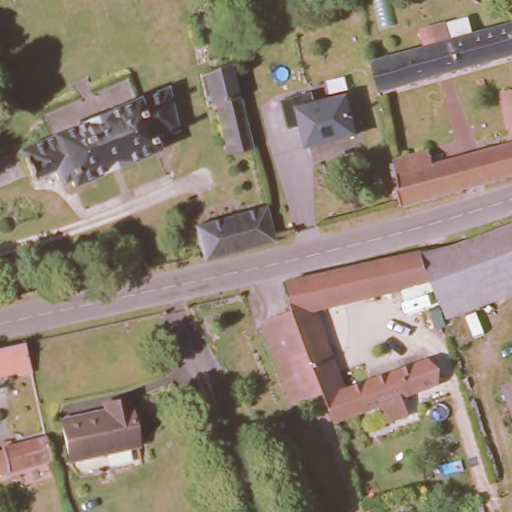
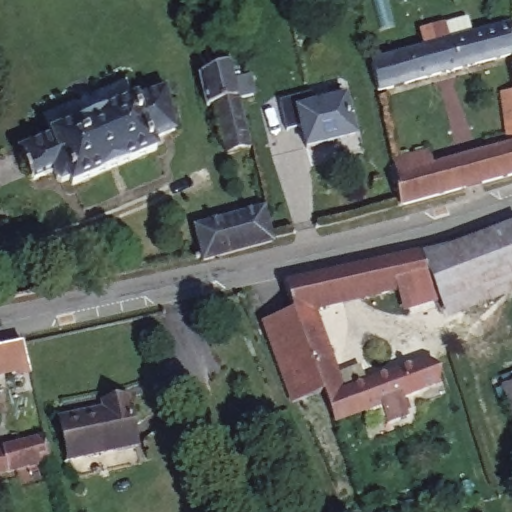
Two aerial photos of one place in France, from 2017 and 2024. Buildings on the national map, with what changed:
unchanged [(373,90),(368,62),(508,26),(512,56),(373,90)]
unchanged [(226,153),(215,113),(206,116),(193,77),(206,74),(226,68),(246,147),(226,153)]
unchanged [(113,204),(110,196),(73,212),(64,187),(55,190),(48,173),(19,184),(7,157),(42,141),(30,112),(61,101),(90,87),(120,75),(131,101),(161,89),(171,118),(152,126),(157,140),(152,149),(162,175),(131,187),(133,195),(113,204)]
unchanged [(424,165),(503,144),(497,94),(512,92),(512,175),(394,206),(387,175),(383,159),(419,149),(424,165)]
unchanged [(298,127),(284,131),(279,103),(316,94),(317,101),(349,95),(359,139),(304,147),(298,127)]
unchanged [(366,178),(368,185),(361,187),(359,181),(366,178)]
unchanged [(189,223),(256,207),(264,242),(198,260),(196,255),(189,223)]
unchanged [(424,283),(414,255),(452,247),(512,222),(512,224),(512,296),(439,322),(424,283)]
unchanged [(382,422),(376,406),(329,422),(318,393),(287,316),(275,286),(371,265),(414,255),(424,283),(304,310),(336,392),(420,361),(429,386),(394,399),(400,415),(382,422)]
unchanged [(288,406),(256,328),(287,316),(318,393),(288,406)]
unchanged [(0,378),(0,351),(19,347),(26,372),(0,378)]
unchanged [(512,383),(512,427),(497,389),(512,383)]
unchanged [(59,423),(101,412),(99,405),(124,397),(138,446),(70,465),(59,423)]
unchanged [(38,435),(48,470),(0,481),(0,444),(38,435)]

